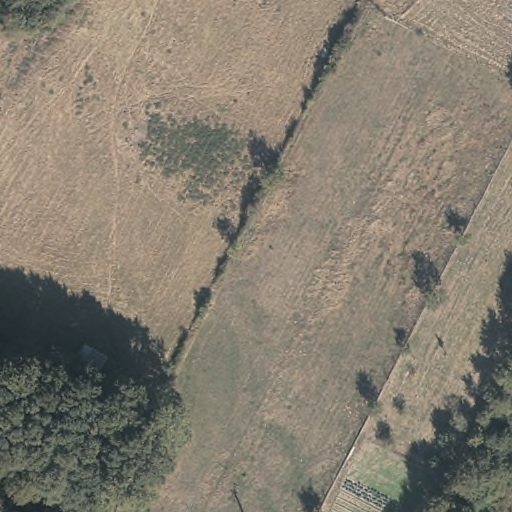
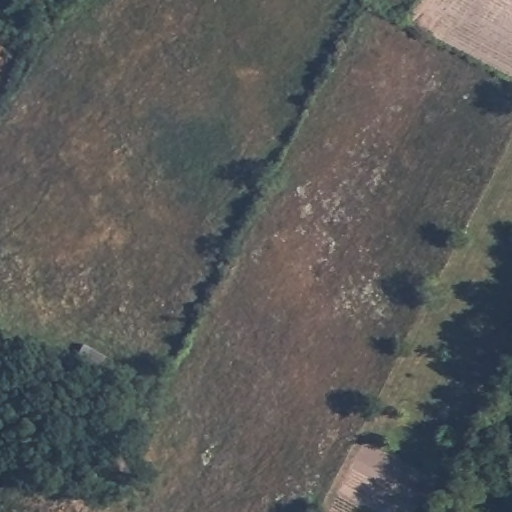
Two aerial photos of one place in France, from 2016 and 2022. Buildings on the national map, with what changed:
unchanged [(85,344),(108,360),(92,382),(69,367),(85,344)]

